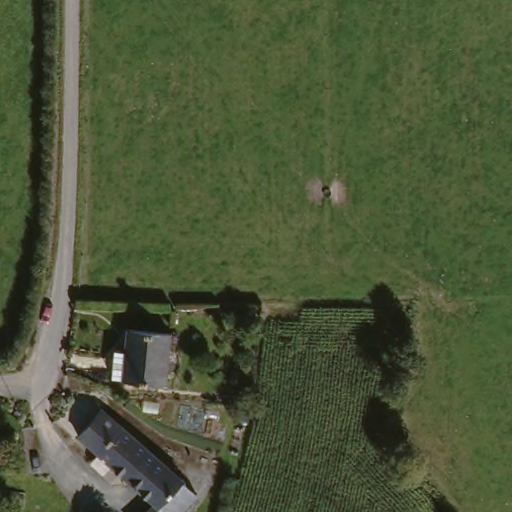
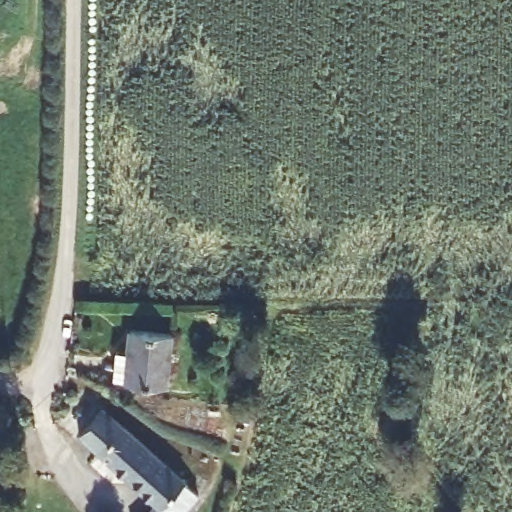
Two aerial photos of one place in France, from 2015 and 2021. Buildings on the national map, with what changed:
unchanged [(175,330),(171,376),(131,372),(135,328),(175,330)]
unchanged [(195,481),(203,491),(184,512),(150,512),(162,500),(84,432),(109,401),(186,470),(195,481)]

